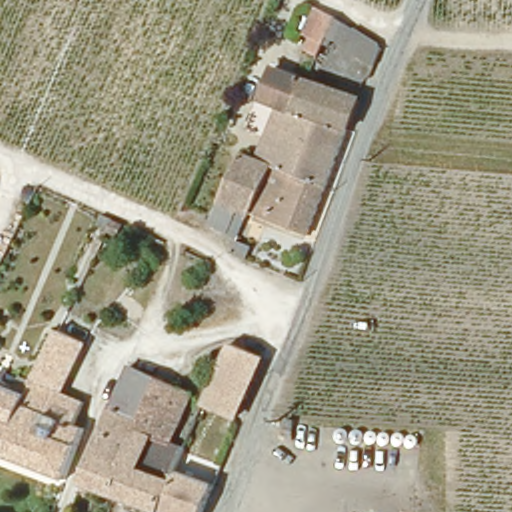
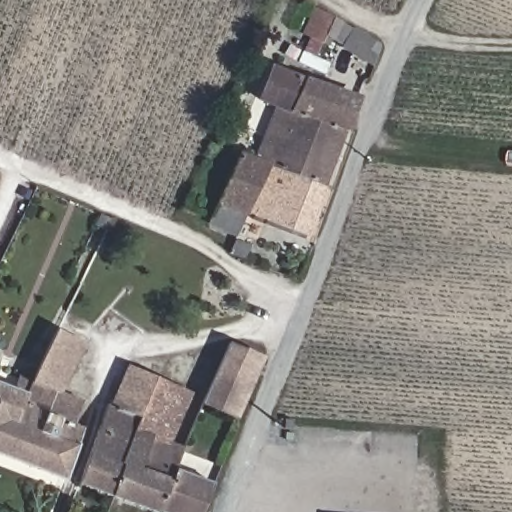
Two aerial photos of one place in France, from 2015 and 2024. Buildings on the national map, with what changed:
unchanged [(381,47),(372,68),(333,44),(328,52),(315,42),(332,19),(381,47)]
unchanged [(277,150),(265,143),(272,127),(284,134),(287,127),(295,113),(296,111),(270,99),(285,69),(311,82),(328,91),(339,96),(358,105),(347,132),(324,189),(267,167),(276,151),(277,150)]
unchanged [(236,211),(226,231),(207,223),(241,156),(267,167),(244,214),(236,211)]
unchanged [(305,237),(244,214),(267,167),(324,189),(305,237)]
unchanged [(111,217),(122,222),(119,229),(107,225),(111,217)]
unchanged [(230,241),(244,247),(238,258),(224,252),(230,241)]
unchanged [(69,312),(95,326),(60,397),(84,407),(76,430),(83,434),(63,482),(0,458),(0,387),(25,397),(69,312)]
unchanged [(237,422),(207,410),(232,348),(261,360),(237,422)]
unchanged [(106,408),(110,410),(127,372),(164,388),(162,394),(191,405),(172,452),(185,457),(177,478),(162,512),(144,512),(77,487),(106,408)]
unchanged [(210,492),(202,512),(162,512),(177,478),(210,492)]

